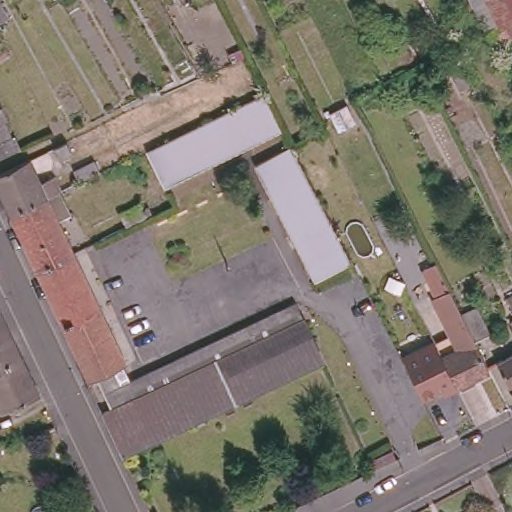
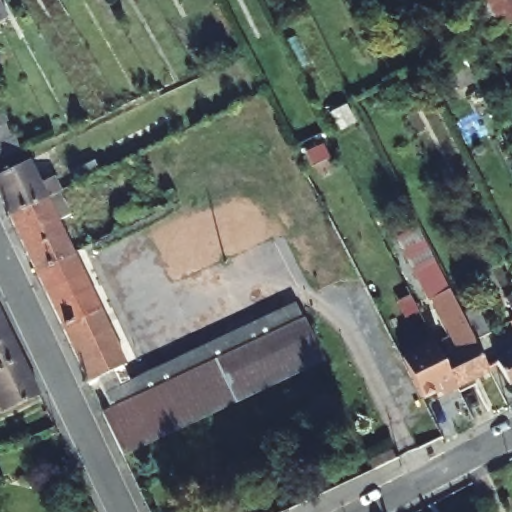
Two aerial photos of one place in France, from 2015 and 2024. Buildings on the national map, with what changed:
unchanged [(0,23),(0,0),(4,0),(13,15),(0,23)]
unchanged [(484,32),(468,0),(512,0),(512,20),(485,34),(484,32)]
demolished [(148,150),(261,95),(265,93),(276,120),(274,121),(161,176),(148,150)]
unchanged [(6,117),(0,120),(0,106),(6,117)]
unchanged [(11,133),(0,139),(0,123),(5,120),(11,133)]
demolished [(274,121),(276,120),(281,129),(165,184),(161,176),(274,121)]
unchanged [(20,147),(0,158),(0,141),(14,134),(20,147)]
demolished [(59,156),(55,146),(66,141),(70,150),(59,156)]
demolished [(350,264),(315,281),(273,196),(257,165),(292,148),(350,264)]
unchanged [(53,172),(62,188),(58,190),(10,214),(0,193),(0,173),(30,158),(41,178),(53,172)]
unchanged [(95,160),(100,170),(79,180),(75,171),(95,160)]
unchanged [(73,219),(61,224),(23,242),(10,214),(58,190),(73,219)]
demolished [(100,237),(93,222),(139,200),(146,215),(100,237)]
unchanged [(74,254),(37,270),(23,242),(61,224),(74,254)]
unchanged [(322,358),(122,453),(103,412),(110,409),(97,380),(90,383),(37,270),(74,254),(127,365),(121,368),(128,381),(135,397),(304,319),(322,358)]
unchanged [(429,297),(433,295),(420,268),(435,261),(475,341),(457,350),(429,297)]
unchanged [(506,299),(512,296),(512,311),(506,299)]
unchanged [(128,381),(296,302),(304,319),(135,397),(128,381)]
unchanged [(490,332),(475,340),(461,312),(477,305),(490,332)]
unchanged [(0,336),(0,311),(10,331),(0,336)]
unchanged [(510,320),(512,320),(512,323),(510,320)]
unchanged [(21,355),(0,366),(0,336),(10,331),(21,355)]
unchanged [(490,371),(456,388),(441,358),(475,341),(490,371)]
unchanged [(445,393),(442,388),(423,397),(403,359),(434,344),(441,358),(456,388),(445,393)]
unchanged [(40,394),(2,412),(0,407),(0,366),(21,355),(40,394)]
unchanged [(510,385),(497,362),(512,355),(512,384),(510,385)]

